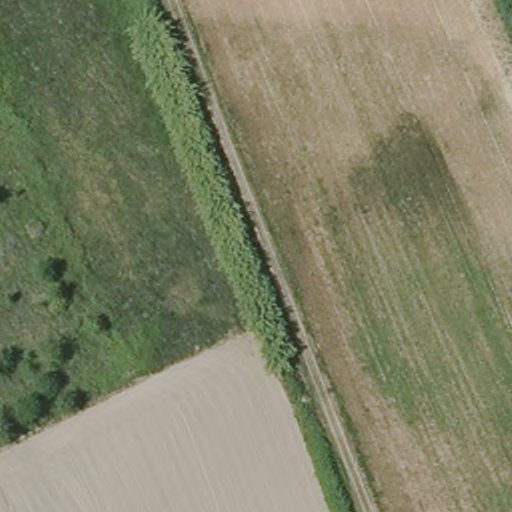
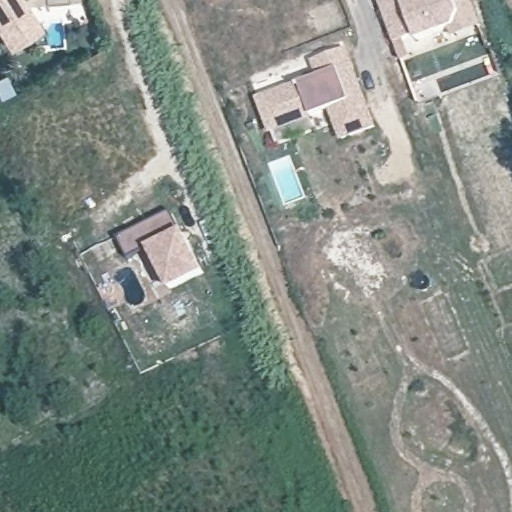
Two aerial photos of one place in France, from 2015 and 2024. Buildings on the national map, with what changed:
new [(0,0),(79,0),(79,1),(27,4),(45,30),(11,51),(0,35),(0,0)]
new [(208,1),(208,0),(210,0),(208,1)]
new [(458,6),(470,0),(484,27),(454,39),(449,30),(417,42),(415,37),(395,44),(377,0),(456,0),(458,6)]
new [(330,111),(313,117),(269,135),(257,99),(301,85),(317,77),(312,61),(348,49),(377,129),(341,142),(330,111)]
new [(172,211),(205,272),(172,290),(152,250),(132,260),(121,239),(172,211)]

